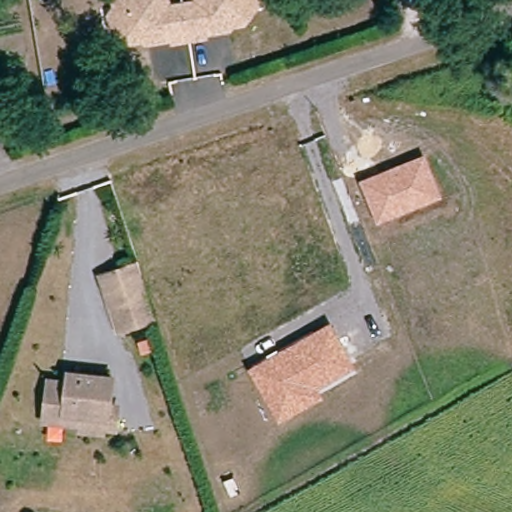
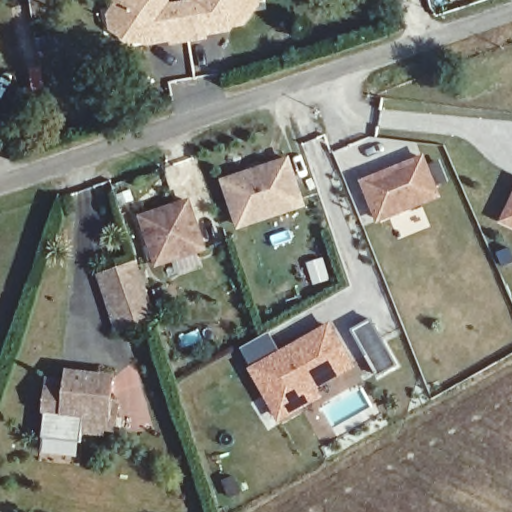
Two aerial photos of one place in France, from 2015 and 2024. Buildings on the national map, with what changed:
unchanged [(172,2),(186,0),(262,0),(262,5),(244,24),(232,28),(232,31),(209,35),(209,40),(168,45),(166,42),(131,47),(125,40),(114,37),(107,27),(106,11),(114,4),(113,0),(172,0),(172,2)]
new [(291,155),(307,206),(238,230),(220,180),(291,155)]
unchanged [(358,181),(426,155),(443,198),(377,225),(358,181)]
new [(500,222),(512,196),(512,227),(500,222)]
new [(209,249),(156,267),(138,214),(190,197),(209,249)]
unchanged [(146,259),(165,323),(121,333),(104,273),(146,259)]
unchanged [(248,369),(330,321),(356,366),(317,388),(323,399),(278,423),(248,369)]
unchanged [(49,411),(52,382),(71,384),(72,374),(116,379),(114,407),(121,408),(120,418),(119,429),(105,427),(105,433),(85,431),(86,425),(77,424),(48,421),(49,411)]

